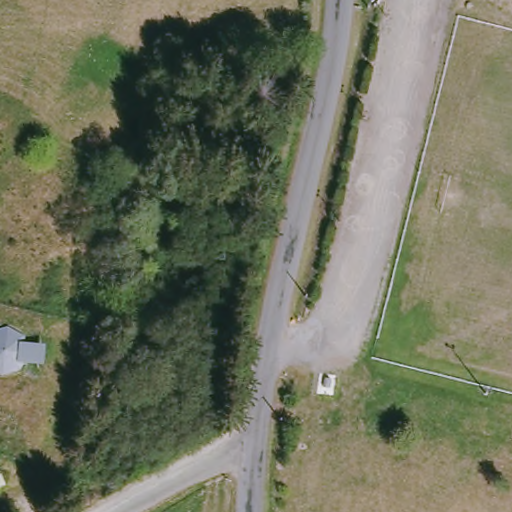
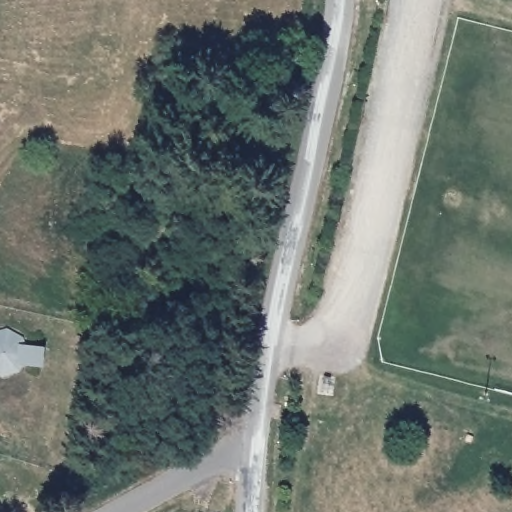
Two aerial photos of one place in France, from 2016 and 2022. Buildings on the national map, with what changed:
unchanged [(10,487),(0,491),(0,478),(4,476),(10,487)]

